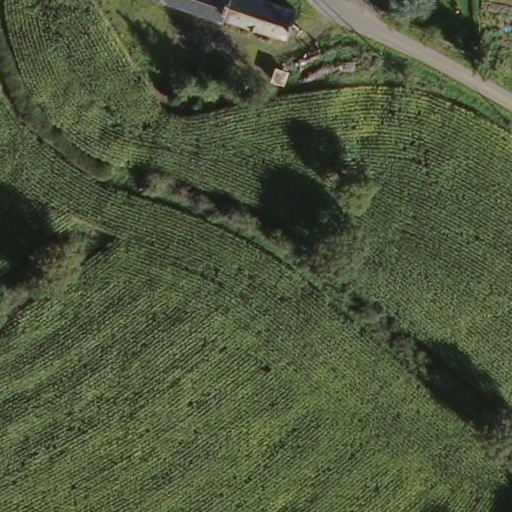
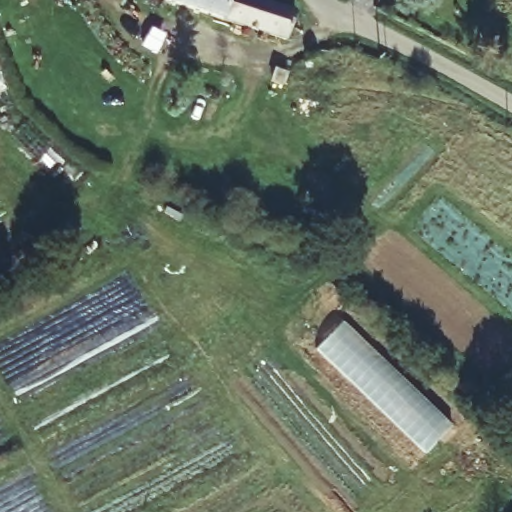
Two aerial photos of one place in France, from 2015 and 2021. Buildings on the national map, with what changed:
unchanged [(174,0),(259,0),(265,2),(293,13),(286,40),(256,30),(174,0)]
unchanged [(277,76),(266,72),(269,65),(280,69),(277,76)]
unchanged [(219,85),(217,97),(203,95),(186,94),(164,90),(168,69),(189,71),(207,74),(221,75),(219,85)]
new [(342,321),(454,423),(427,453),(314,351),(342,321)]

